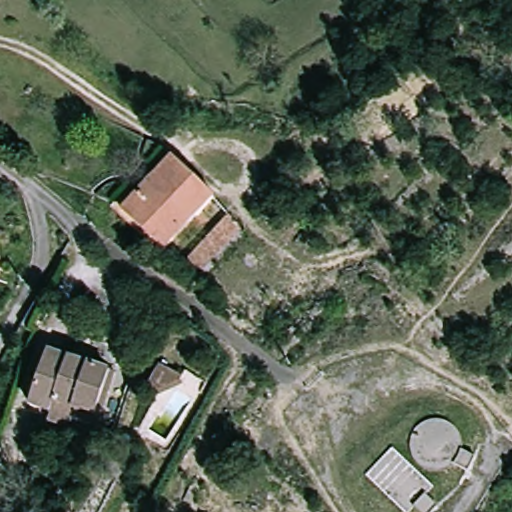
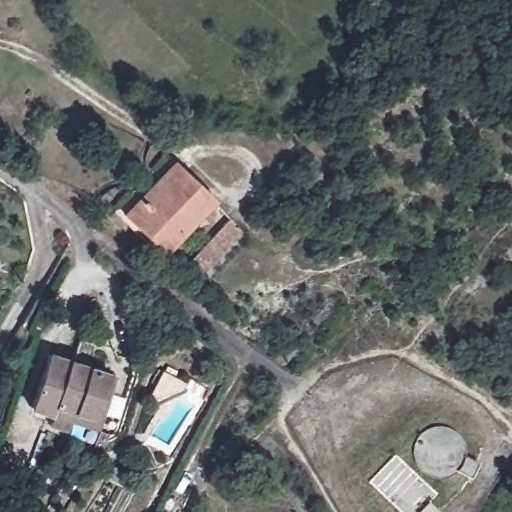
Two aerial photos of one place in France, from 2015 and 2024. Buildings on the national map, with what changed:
unchanged [(215,200),(163,255),(121,214),(171,160),(215,200)]
unchanged [(240,231),(243,239),(206,277),(203,273),(183,265),(230,219),(240,231)]
unchanged [(48,353),(110,374),(95,421),(56,408),(53,417),(29,410),(48,353)]
unchanged [(201,387),(198,392),(186,385),(146,401),(142,400),(163,365),(201,387)]
unchanged [(53,417),(56,408),(95,421),(110,374),(118,377),(99,434),(70,425),(68,432),(26,418),(29,410),(53,417)]

